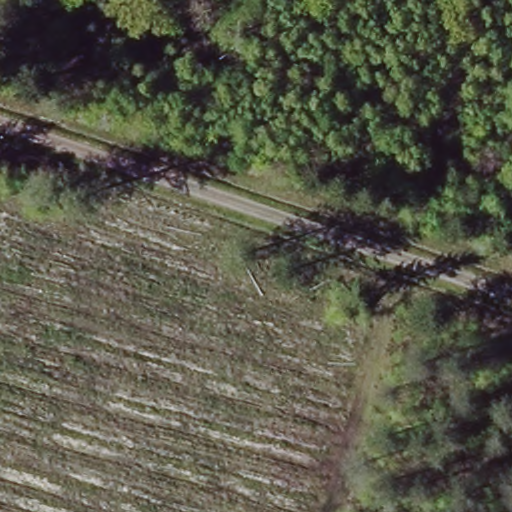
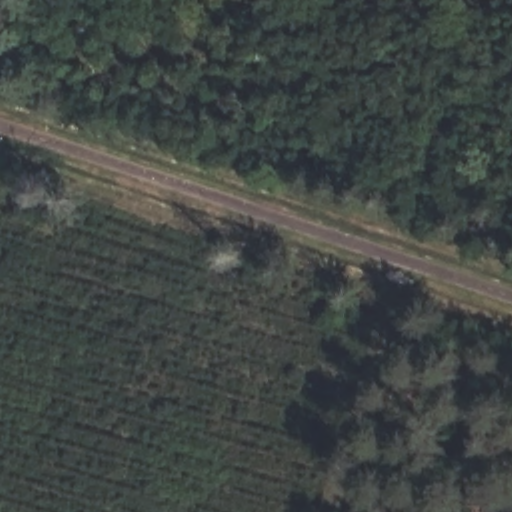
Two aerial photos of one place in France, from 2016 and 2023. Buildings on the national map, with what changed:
[]

